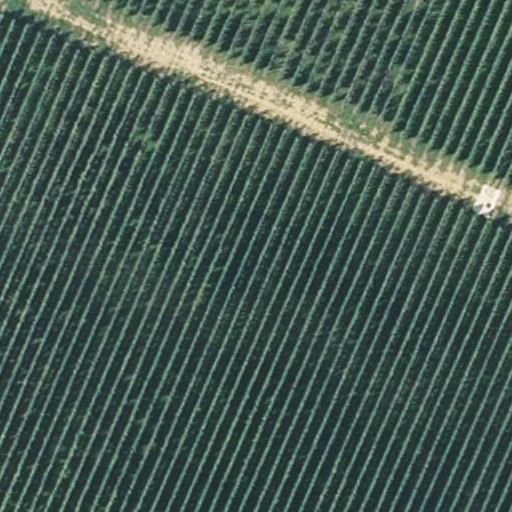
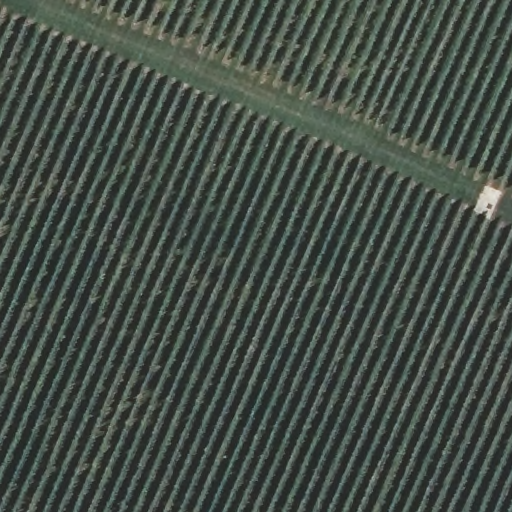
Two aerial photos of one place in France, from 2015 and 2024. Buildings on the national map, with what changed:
[]

